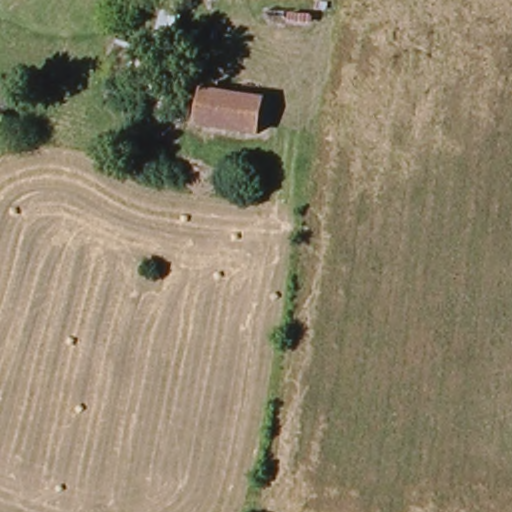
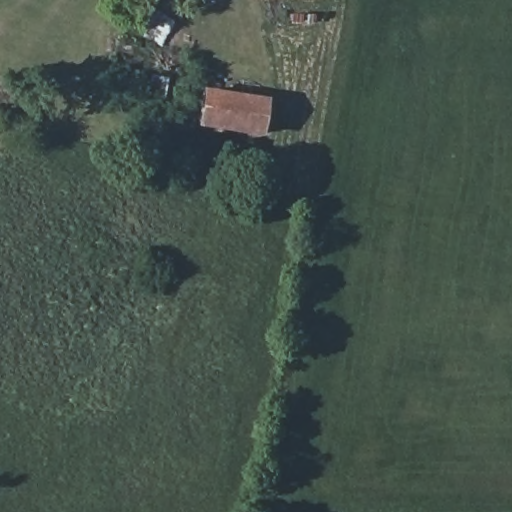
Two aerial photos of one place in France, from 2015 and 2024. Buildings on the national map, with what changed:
unchanged [(182,0),(199,0),(198,4),(182,0)]
unchanged [(311,0),(323,0),(323,1),(311,0)]
unchanged [(178,48),(157,38),(164,14),(187,20),(178,48)]
unchanged [(200,130),(207,90),(269,102),(263,140),(200,130)]

